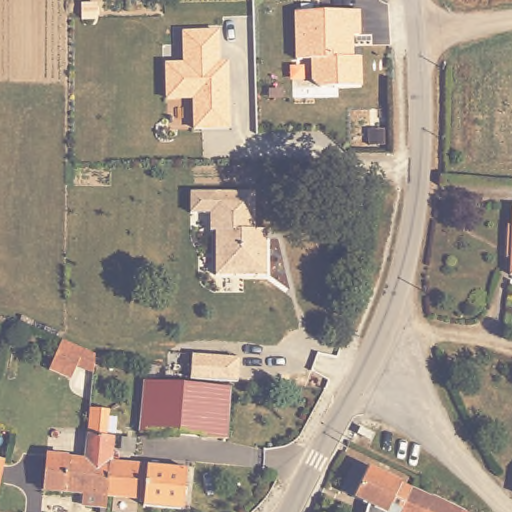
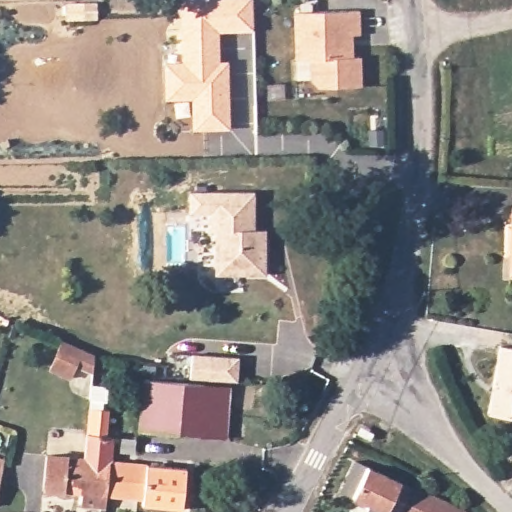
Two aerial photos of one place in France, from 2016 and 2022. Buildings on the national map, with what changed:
unchanged [(179,0),(253,0),(254,30),(220,30),(182,32),(179,0)]
unchanged [(361,10),(361,36),(353,36),(353,57),(363,57),(363,87),(319,88),(310,80),(310,59),(295,60),(294,14),(361,10)]
unchanged [(220,30),(220,61),(230,61),(231,129),(192,130),(192,99),(165,100),(164,64),(183,64),(182,32),(220,30)]
unchanged [(257,192),(256,229),(267,229),(266,274),(214,274),(215,233),(209,233),(209,212),(191,212),(191,193),(257,192)]
unchanged [(512,271),(511,203),(512,203),(512,271)]
unchanged [(91,368),(85,365),(73,360),(67,373),(47,364),(60,336),(70,341),(80,345),(91,350),(91,368)]
new [(500,345),(512,347),(512,418),(489,414),(500,345)]
unchanged [(239,358),(238,383),(190,379),(192,354),(239,358)]
unchanged [(232,388),(229,440),(137,434),(141,381),(232,388)]
unchanged [(85,505),(86,492),(45,488),(46,457),(87,458),(89,436),(88,410),(107,409),(108,437),(113,437),(111,460),(188,463),(184,510),(144,507),(145,496),(108,493),(106,512),(99,512),(99,506),(85,505)]
unchanged [(1,482),(0,490),(0,458),(6,459),(1,482)]
unchanged [(338,487),(351,461),(414,485),(437,496),(465,512),(365,512),(368,501),(338,487)]

